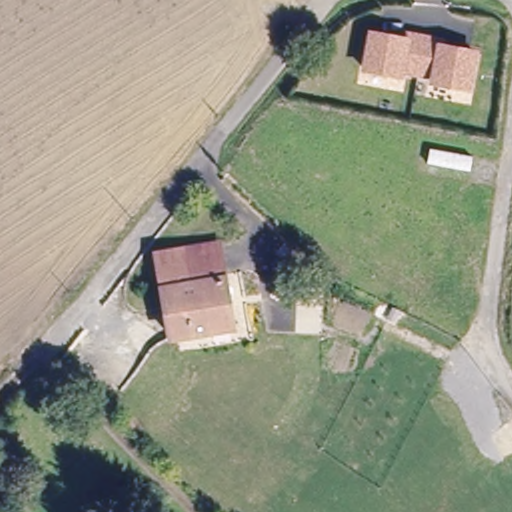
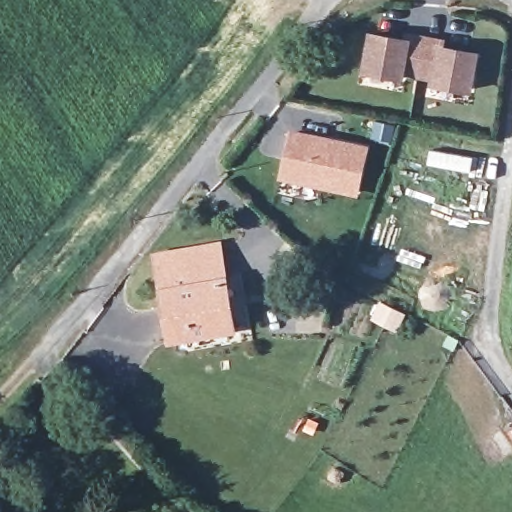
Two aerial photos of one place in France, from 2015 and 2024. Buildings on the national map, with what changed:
unchanged [(408,41),(410,35),(427,39),(420,76),(403,72),(402,77),(367,70),(374,33),(408,41)]
unchanged [(445,42),(443,48),(455,50),(478,55),(471,91),(438,85),(434,84),(435,79),(428,78),(420,76),(427,39),(445,42)]
new [(370,146),(358,196),(279,180),(290,128),(370,146)]
unchanged [(240,327),(174,340),(160,260),(191,254),(224,247),(229,272),(231,282),(238,318),(240,327)]

